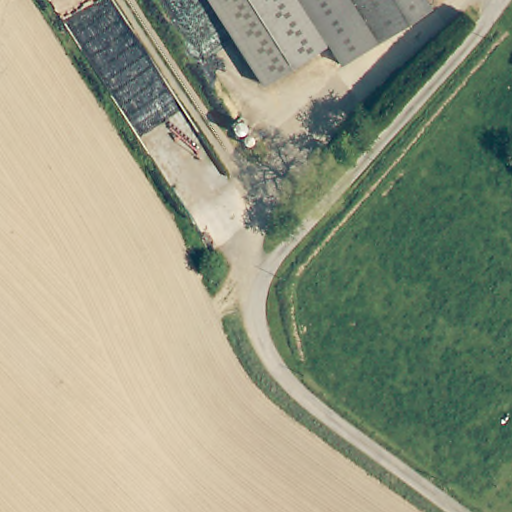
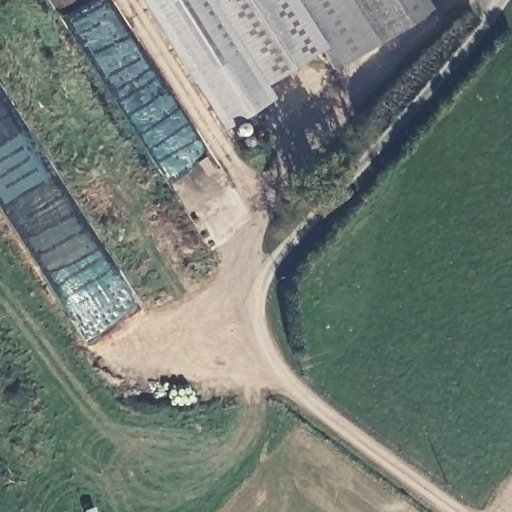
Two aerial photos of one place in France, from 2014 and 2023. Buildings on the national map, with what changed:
new [(220,15),(268,89),(275,99),(226,130),(141,0),(211,0),(220,15)]
unchanged [(332,47),(284,79),(268,89),(220,15),(211,0),(302,0),(332,47)]
unchanged [(302,0),(428,0),(433,8),(342,67),(332,47),(302,0)]

